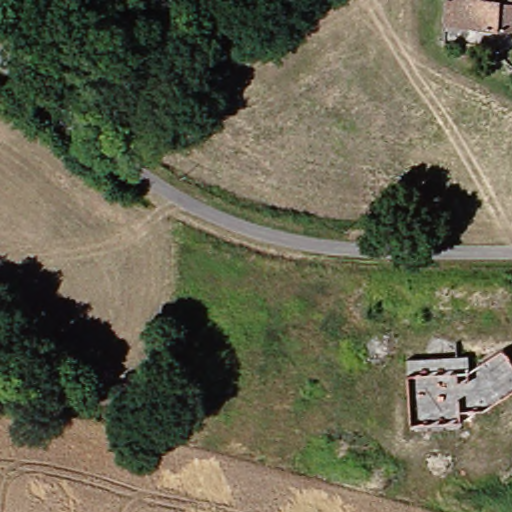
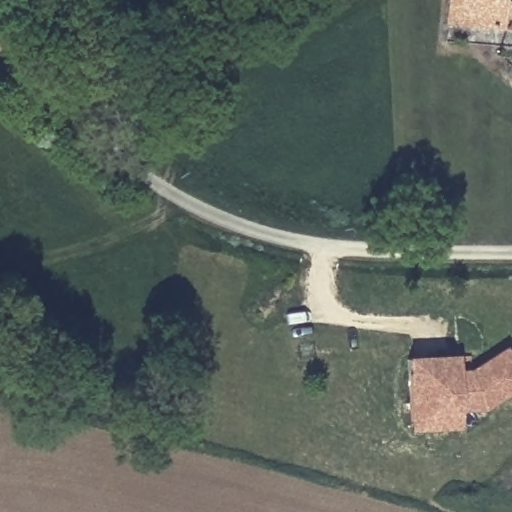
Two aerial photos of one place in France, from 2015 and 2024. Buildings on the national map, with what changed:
unchanged [(512,28),(461,25),(447,24),(449,0),(512,0),(512,28)]
unchanged [(512,370),(512,399),(484,418),(460,420),(461,437),(412,441),(408,368),(468,365),(469,379),(503,356),(512,370)]

